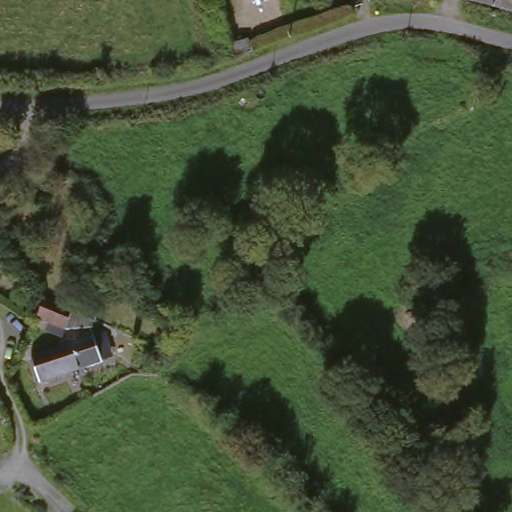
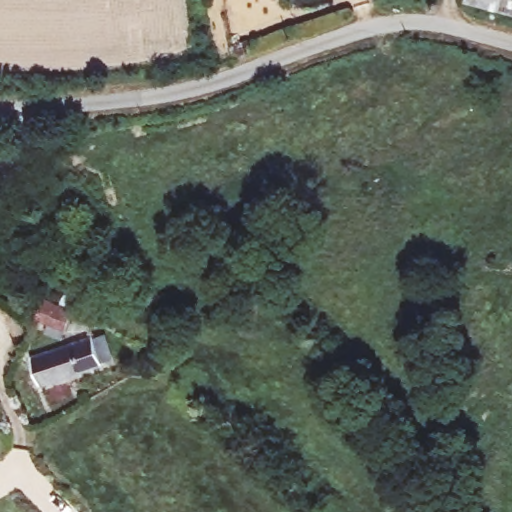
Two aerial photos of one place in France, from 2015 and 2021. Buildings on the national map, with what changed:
unchanged [(463,0),(512,0),(512,21),(461,9),(463,0)]
unchanged [(41,308),(67,317),(60,334),(36,324),(34,322),(41,308)]
unchanged [(24,373),(85,342),(97,364),(37,396),(24,373)]

